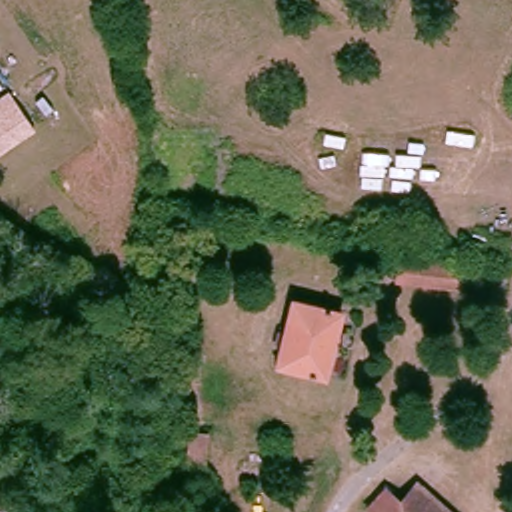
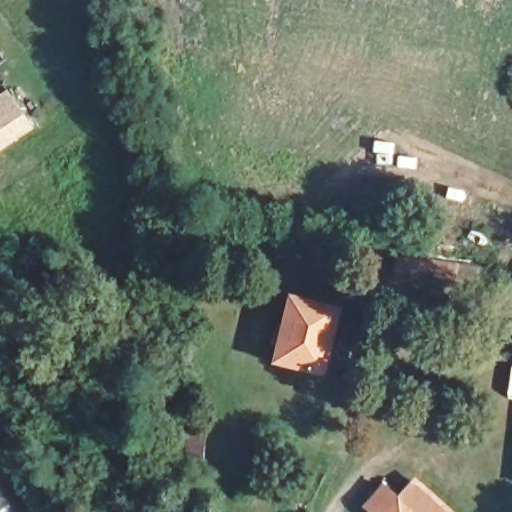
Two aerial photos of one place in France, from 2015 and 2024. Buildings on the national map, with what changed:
unchanged [(0,150),(0,109),(13,100),(32,127),(0,150)]
unchanged [(455,269),(458,270),(458,289),(396,284),(397,265),(439,268),(440,257),(456,258),(455,269)]
unchanged [(325,375),(275,365),(290,296),(339,307),(325,375)]
unchanged [(408,512),(396,502),(408,487),(438,512),(408,512)]
unchanged [(396,502),(408,512),(367,512),(364,510),(381,488),(396,502)]

